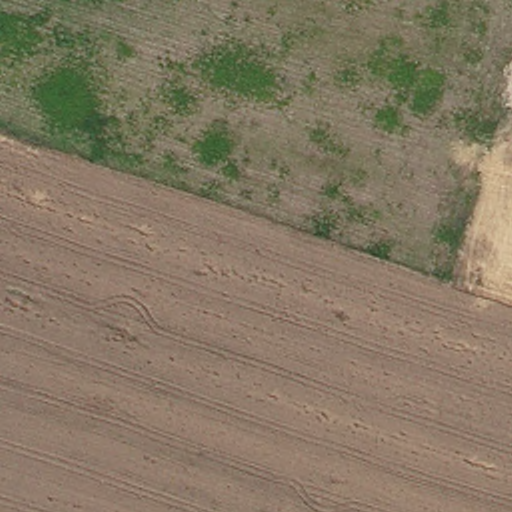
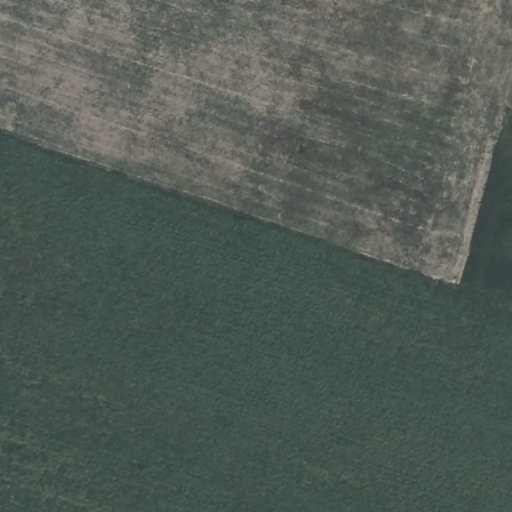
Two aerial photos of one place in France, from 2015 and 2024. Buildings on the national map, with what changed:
[]

